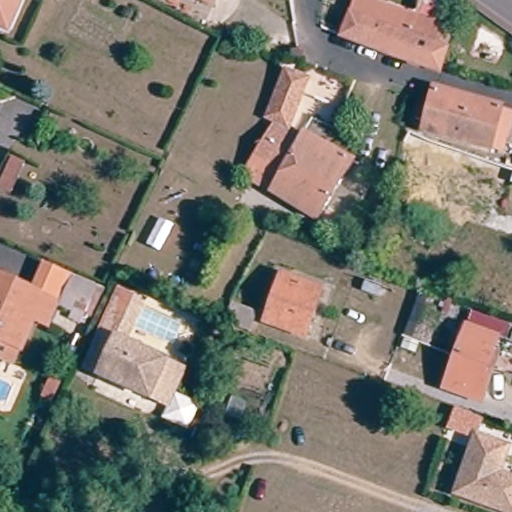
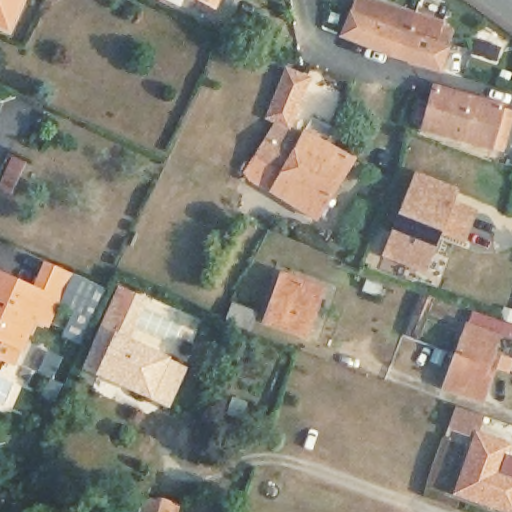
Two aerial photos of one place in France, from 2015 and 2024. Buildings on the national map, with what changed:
unchanged [(0,22),(0,0),(15,0),(5,24),(0,22)]
unchanged [(165,0),(167,0),(166,1),(165,0)]
unchanged [(213,2),(209,0),(214,0),(213,2)]
unchanged [(391,60),(368,52),(335,40),(344,15),(402,36),(409,17),(437,27),(449,32),(442,51),(432,72),(391,60)]
unchanged [(257,156),(273,121),(268,119),(289,70),(311,79),(291,128),(302,135),(281,170),(257,156)]
unchanged [(486,150),(440,137),(441,132),(422,126),(437,90),(498,107),(509,111),(498,152),(486,149),(486,150)]
unchanged [(400,115),(410,119),(406,127),(396,123),(400,115)]
unchanged [(246,175),(249,170),(234,161),(240,153),(255,161),(257,156),(281,170),(302,135),(305,131),(352,162),(314,220),(246,175)]
unchanged [(33,144),(40,132),(46,136),(40,147),(33,144)]
unchanged [(0,189),(0,183),(12,157),(24,163),(9,194),(0,189)]
new [(442,237),(426,276),(383,257),(416,172),(461,191),(456,202),(479,212),(466,245),(442,237)]
unchanged [(266,316),(283,268),(325,283),(308,331),(266,316)]
unchanged [(0,357),(0,277),(43,295),(56,301),(47,323),(33,317),(21,348),(18,347),(11,362),(0,357)]
unchanged [(367,281),(380,286),(376,297),(363,291),(367,281)]
unchanged [(74,326),(77,319),(63,313),(76,285),(99,296),(104,297),(88,333),(74,326)]
unchanged [(86,371),(104,329),(108,331),(127,286),(141,292),(121,337),(171,358),(151,400),(86,371)]
unchanged [(227,315),(234,297),(259,306),(252,325),(227,315)]
unchanged [(468,322),(498,333),(492,348),(498,351),(493,362),(480,397),(445,383),(468,322)]
unchanged [(512,343),(512,359),(507,357),(512,343)]
unchanged [(49,380),(58,385),(51,401),(42,397),(49,380)]
unchanged [(512,499),(508,508),(452,488),(472,431),(501,442),(492,468),(512,476),(512,499)]
unchanged [(162,500),(177,505),(175,512),(143,512),(146,501),(162,500)]

